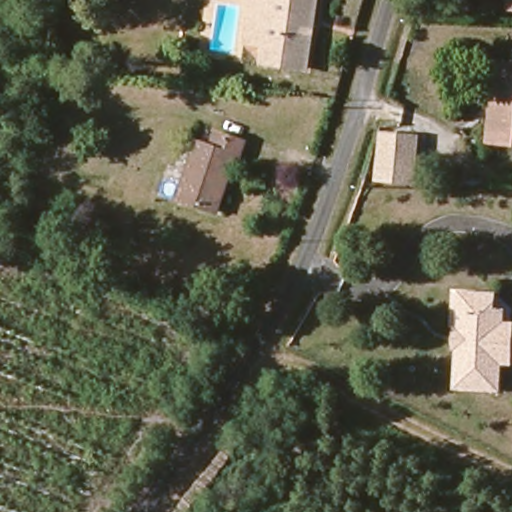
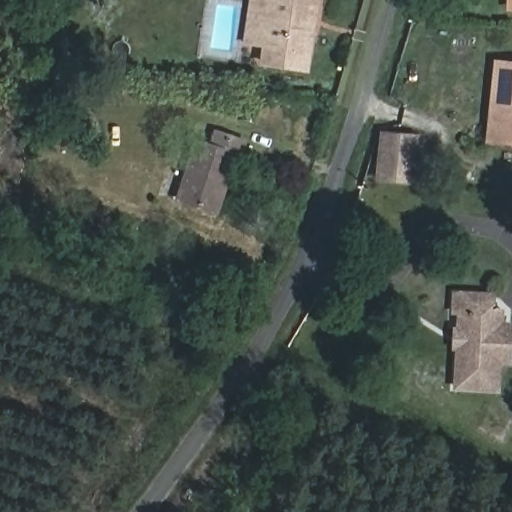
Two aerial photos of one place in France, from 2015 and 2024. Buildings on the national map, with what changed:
unchanged [(242,46),(246,0),(319,0),(308,71),(261,64),(262,49),(242,46)]
unchanged [(512,0),(512,5),(505,5),(506,0),(512,0)]
unchanged [(491,140),(499,63),(512,64),(512,142),(491,140)]
unchanged [(70,78),(69,105),(36,104),(38,75),(70,78)]
unchanged [(201,144),(212,149),(219,133),(249,148),(217,217),(186,203),(180,199),(188,177),(201,144)]
unchanged [(373,180),(376,140),(407,141),(407,182),(373,180)]
unchanged [(505,362),(495,362),(492,387),(450,387),(453,348),(447,347),(450,324),(455,324),(456,308),(452,307),(453,290),(490,293),(491,307),(498,308),(499,324),(507,324),(505,362)]

